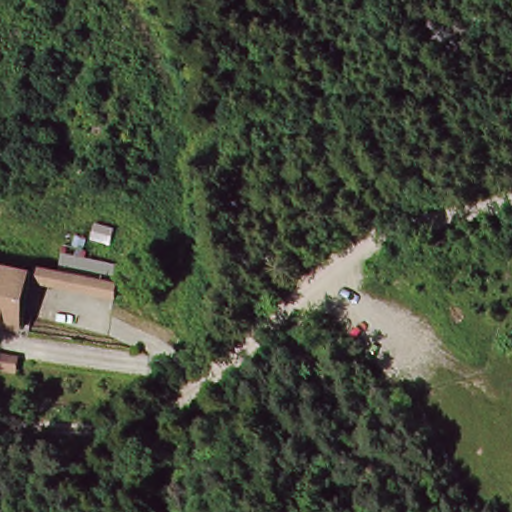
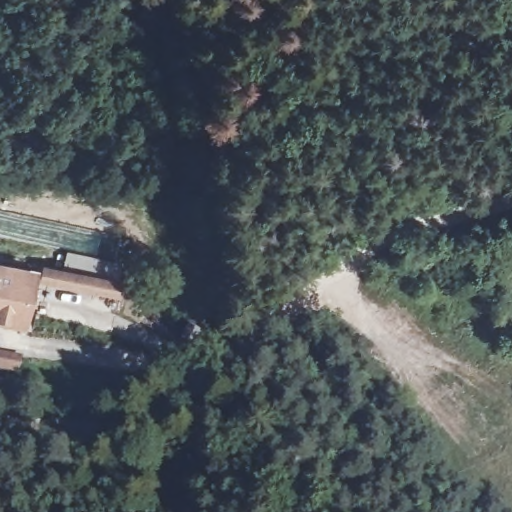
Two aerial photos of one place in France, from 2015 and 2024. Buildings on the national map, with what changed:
unchanged [(113,282),(127,286),(123,304),(38,289),(41,273),(42,265),(60,269),(64,247),(113,262),(113,282)]
unchanged [(30,320),(0,317),(0,268),(34,272),(30,320)]

